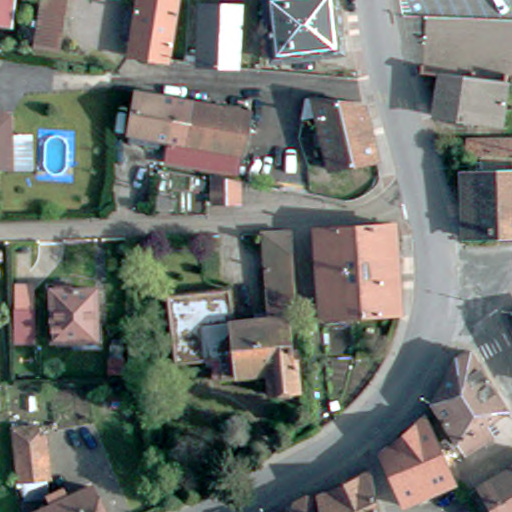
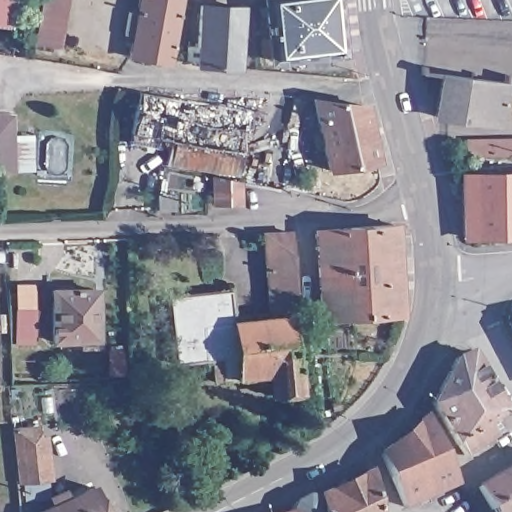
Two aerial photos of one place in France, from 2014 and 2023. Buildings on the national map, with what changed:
unchanged [(0,28),(0,0),(12,0),(8,30),(0,28)]
unchanged [(31,42),(39,0),(66,0),(58,47),(31,42)]
unchanged [(152,56),(136,54),(138,39),(131,38),(136,6),(141,7),(142,0),(182,0),(176,59),(152,56)]
unchanged [(273,59),(264,0),(330,0),(338,50),(273,59)]
unchanged [(237,7),(234,69),(203,67),(195,66),(196,6),(237,7)]
unchanged [(435,113),(441,76),(510,87),(504,125),(435,113)]
unchanged [(129,147),(131,136),(139,92),(253,111),(240,174),(168,161),(172,142),(163,141),(161,152),(129,147)]
unchanged [(324,132),(314,99),(369,104),(381,149),(384,161),(334,169),(327,143),(317,145),(314,134),(324,132)]
unchanged [(15,171),(0,171),(0,113),(13,115),(15,171)]
unchanged [(478,154),(477,140),(512,139),(512,153),(478,154)]
unchanged [(512,172),(512,232),(473,234),(468,175),(512,172)]
unchanged [(213,203),(213,176),(241,181),(242,202),(213,203)]
unchanged [(165,204),(151,205),(151,194),(164,194),(165,204)]
unchanged [(392,223),(394,311),(318,315),(314,227),(392,223)]
unchanged [(209,360),(175,362),(171,295),(231,291),(233,322),(256,321),(256,315),(269,313),(265,236),(291,236),(296,318),(285,319),(288,365),(293,365),(294,396),(289,396),(286,400),(276,401),(272,397),(268,397),(267,382),(254,383),(253,377),(218,378),(218,365),(210,366),(209,360)]
unchanged [(49,288),(94,287),(95,337),(51,338),(49,288)]
unchanged [(35,338),(18,339),(16,311),(33,311),(35,338)]
unchanged [(449,358),(464,351),(505,410),(491,418),(496,427),(459,453),(427,402),(449,358)]
unchanged [(454,481),(435,488),(439,498),(422,507),(417,497),(402,505),(377,453),(421,413),(449,471),(454,481)]
unchanged [(32,425),(33,433),(42,432),(45,476),(15,478),(10,426),(32,425)]
unchanged [(476,483),(512,463),(512,512),(491,512),(476,483)]
unchanged [(352,474),(358,512),(303,512),(301,501),(352,474)]
unchanged [(31,509),(65,493),(63,488),(76,482),(79,487),(88,483),(102,512),(32,512),(31,509)]
unchanged [(278,504),(286,500),(300,502),(301,512),(274,512),(278,504)]

